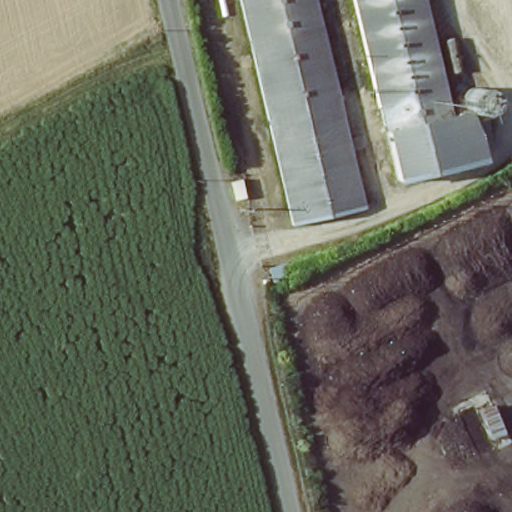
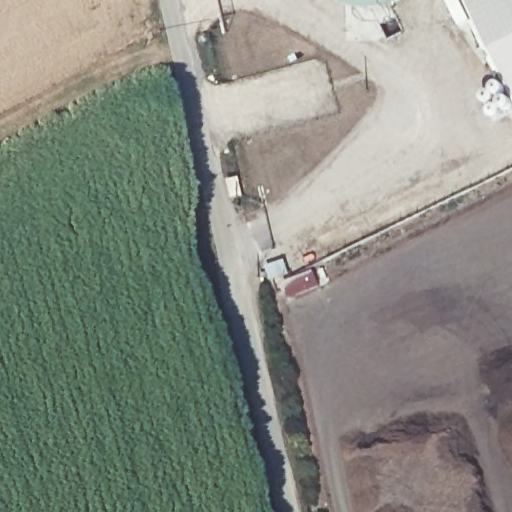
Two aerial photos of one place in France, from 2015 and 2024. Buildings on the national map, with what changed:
demolished [(238,0),(311,0),(330,75),(360,206),(290,223),(255,74),(238,0)]
demolished [(355,0),(420,0),(430,37),(450,121),(470,117),(478,166),(397,185),(367,56),(355,0)]
new [(512,113),(510,114),(507,113),(505,112),(502,110),(497,106),(492,107),(490,107),(485,102),(485,100),(485,97),(487,94),(496,89),(498,87),(502,86),(505,86),(506,87),(465,0),(512,0),(512,113)]
demolished [(480,85),(486,87),(490,95),(489,102),(484,106),(475,110),(466,106),(463,99),(466,88),(472,85),(480,85)]
new [(240,175),(244,194),(230,197),(225,179),(240,175)]
new [(284,260),(289,274),(270,280),(266,266),(284,260)]
new [(320,286),(290,300),(283,286),(313,272),(320,286)]

